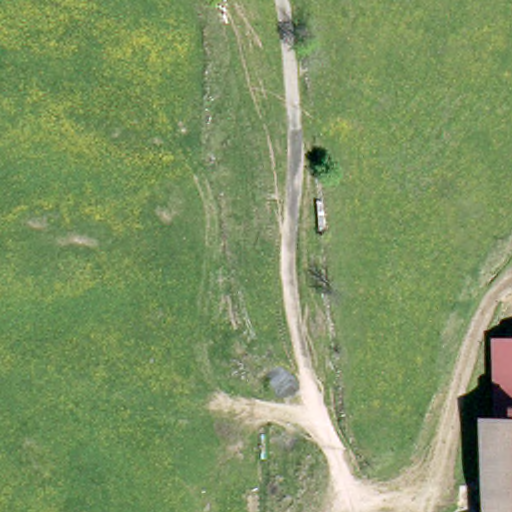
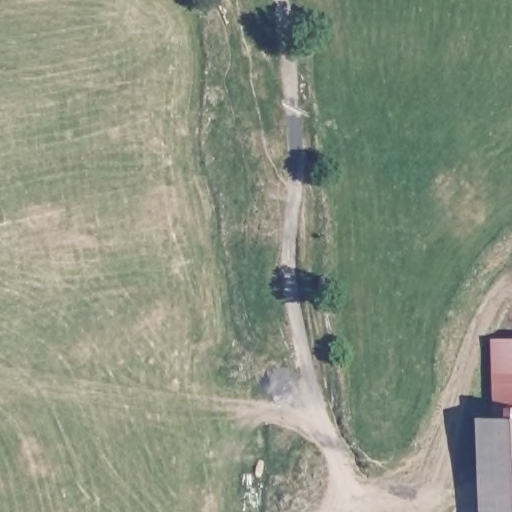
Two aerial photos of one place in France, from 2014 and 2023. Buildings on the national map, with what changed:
unchanged [(488,418),(501,418),(500,340),(512,340),(512,512),(489,512),(488,419),(488,418)]

